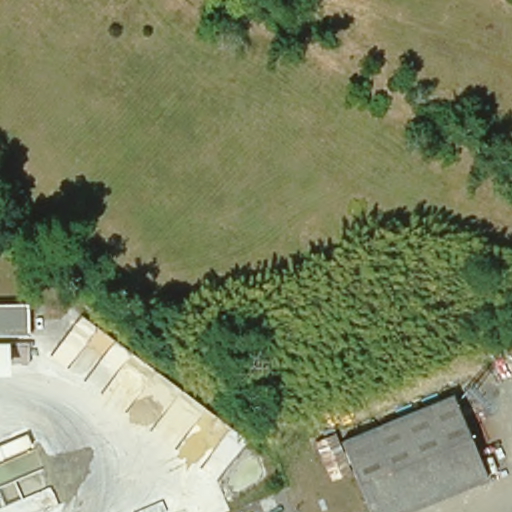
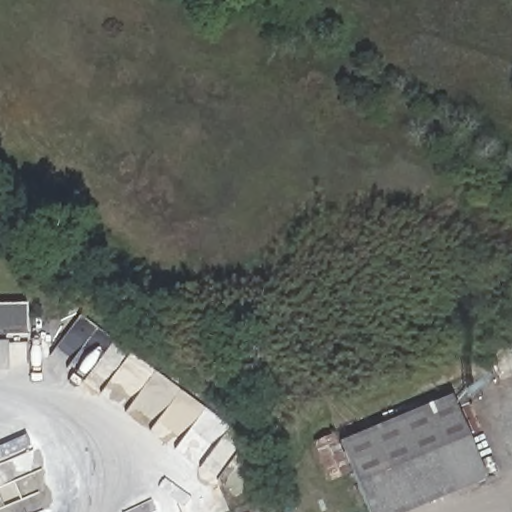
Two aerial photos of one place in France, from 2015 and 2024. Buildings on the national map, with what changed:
unchanged [(30,337),(0,338),(0,306),(30,306),(30,337)]
unchanged [(345,447),(455,401),(487,479),(410,512),(372,512),(345,447)]
unchanged [(316,442),(336,434),(352,473),(332,482),(316,442)]

